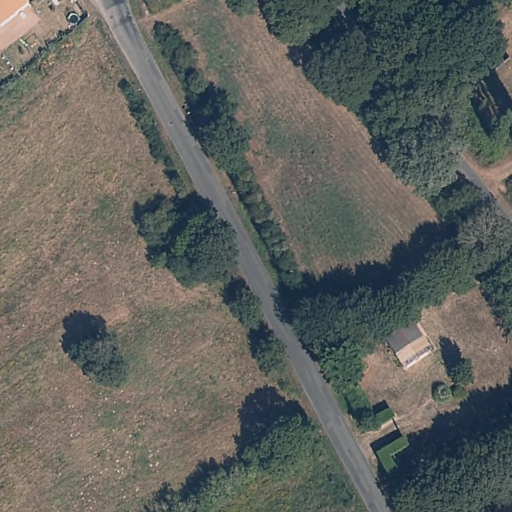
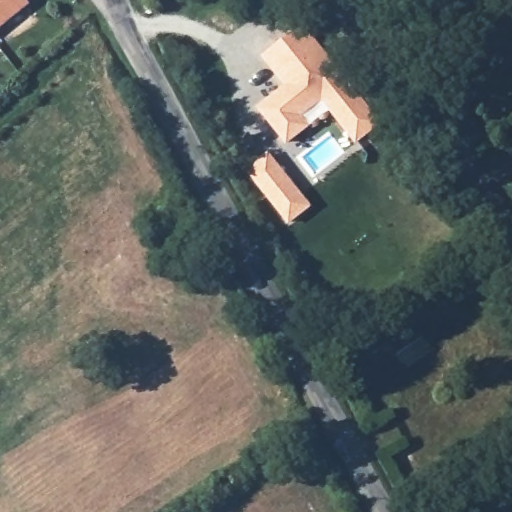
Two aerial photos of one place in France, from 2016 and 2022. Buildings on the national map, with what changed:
unchanged [(22,0),(30,10),(0,34),(0,0),(22,0)]
unchanged [(249,0),(281,0),(281,1),(261,16),(249,0)]
new [(283,86),(260,57),(302,23),(380,125),(354,146),(320,104),(302,118),(310,127),(283,148),(255,109),(283,86)]
new [(267,153),(311,208),(287,227),(244,171),(267,153)]
unchanged [(387,340),(416,324),(430,351),(400,368),(387,340)]

